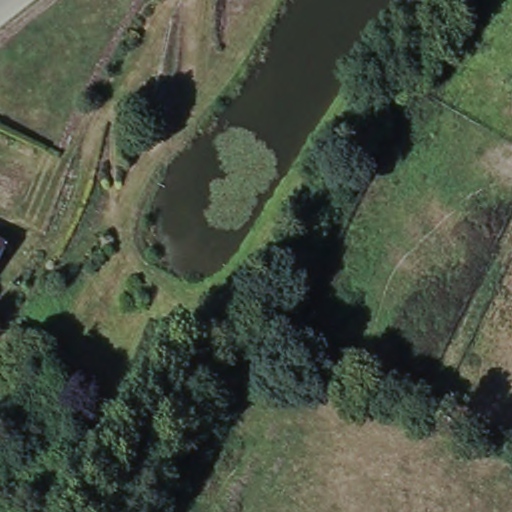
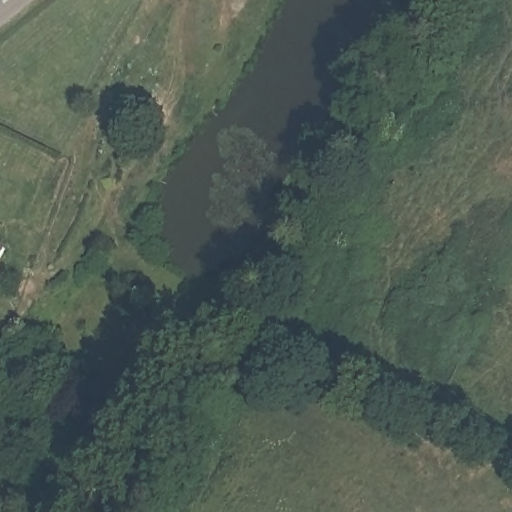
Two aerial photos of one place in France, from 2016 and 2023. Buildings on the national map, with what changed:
unchanged [(7,256),(0,270),(0,252),(7,256)]

